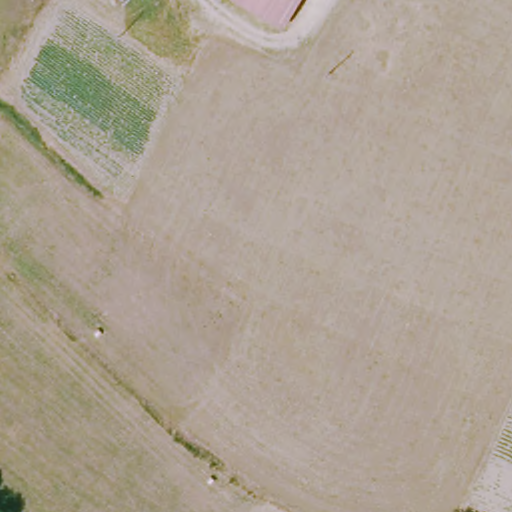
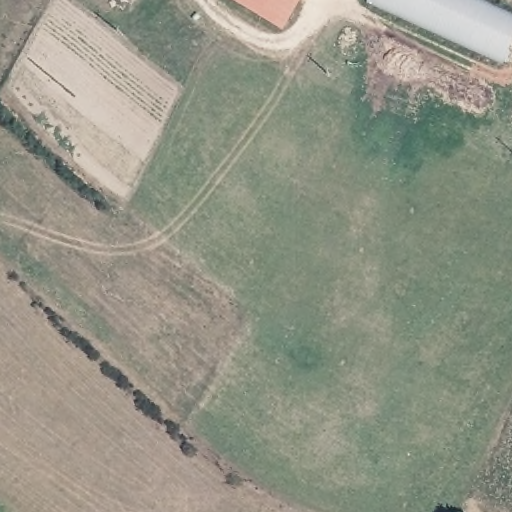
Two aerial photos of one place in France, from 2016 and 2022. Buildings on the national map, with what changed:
unchanged [(280,27),(233,0),(287,0),(294,4),(280,27)]
unchanged [(296,0),(294,4),(287,0),(296,0)]
new [(367,0),(483,0),(512,13),(512,43),(502,65),(366,3),(367,0)]

